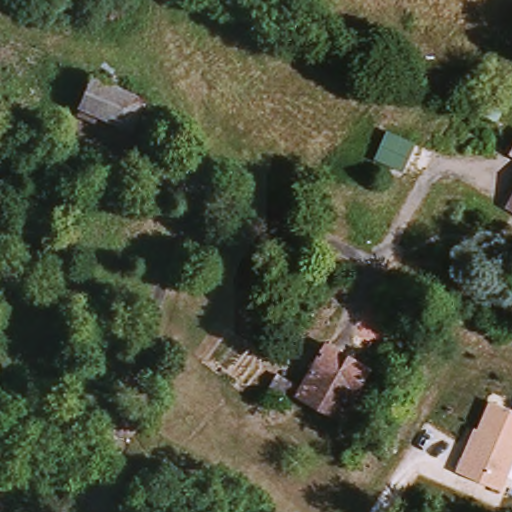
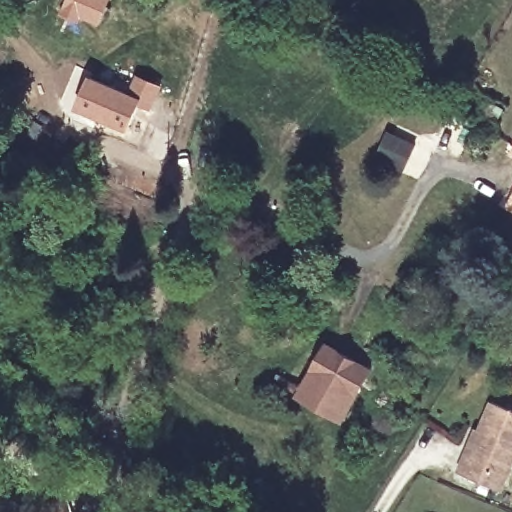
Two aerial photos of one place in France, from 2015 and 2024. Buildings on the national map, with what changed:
new [(110,0),(97,29),(80,22),(78,25),(56,15),(63,0),(110,0)]
unchanged [(89,77),(141,99),(128,130),(76,108),(89,77)]
unchanged [(504,109),(497,123),(483,116),(489,102),(504,109)]
unchanged [(374,158),(387,129),(418,142),(405,172),(374,158)]
unchanged [(508,212),(512,205),(512,214),(508,212)]
unchanged [(305,391),(334,340),(377,364),(349,415),(305,391)]
unchanged [(292,397),(270,385),(279,368),(301,380),(292,397)]
unchanged [(475,427),(480,429),(492,399),(512,407),(512,471),(504,490),(458,470),(475,427)]

